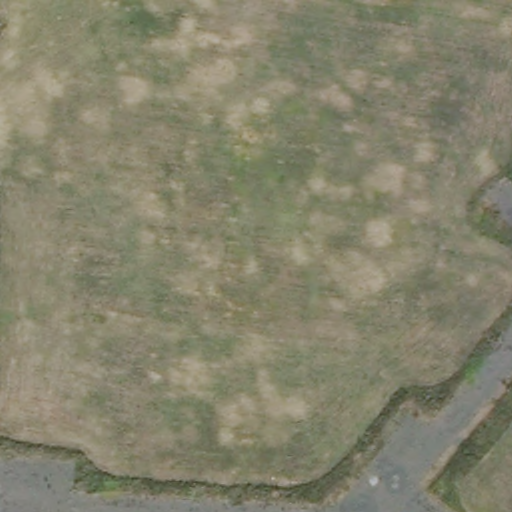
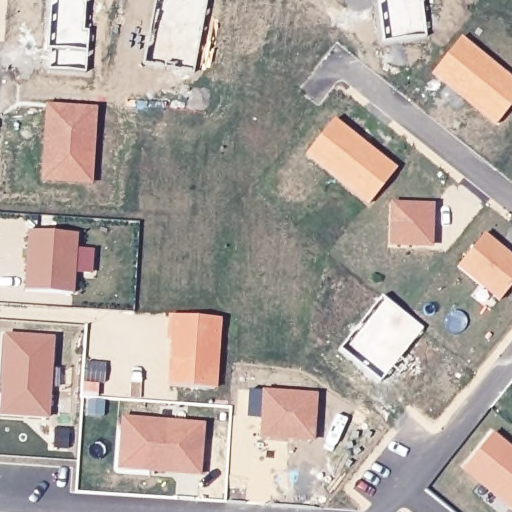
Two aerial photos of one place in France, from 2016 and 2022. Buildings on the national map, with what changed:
new [(86,0),(83,29),(88,29),(86,70),(56,68),(56,46),(49,46),(52,0),(86,0)]
new [(142,64),(156,0),(208,0),(195,71),(142,64)]
new [(380,0),(423,0),(427,34),(385,40),(380,0)]
new [(430,71),(464,35),(512,74),(512,104),(495,126),(430,71)]
new [(39,182),(43,100),(99,105),(94,182),(39,182)]
new [(368,207),(305,155),(336,116),(398,166),(368,207)]
new [(435,247),(388,247),(391,201),(435,201),(435,247)]
new [(30,234),(76,236),(73,296),(26,293),(30,234)]
new [(512,256),(512,286),(500,300),(458,267),(485,235),(512,256)]
new [(380,378),(341,347),(384,296),(424,328),(380,378)]
new [(220,386),(166,386),(170,312),(225,317),(220,386)]
new [(0,414),(0,372),(2,330),(56,331),(51,417),(0,414)]
new [(250,392),(317,396),(315,441),(263,438),(264,421),(248,420),(250,392)]
new [(200,477),(116,470),(120,417),(205,423),(200,477)]
new [(491,429),(512,446),(512,511),(462,467),(491,429)]

